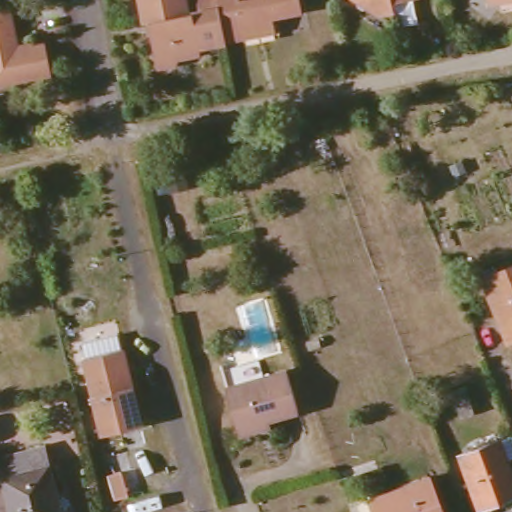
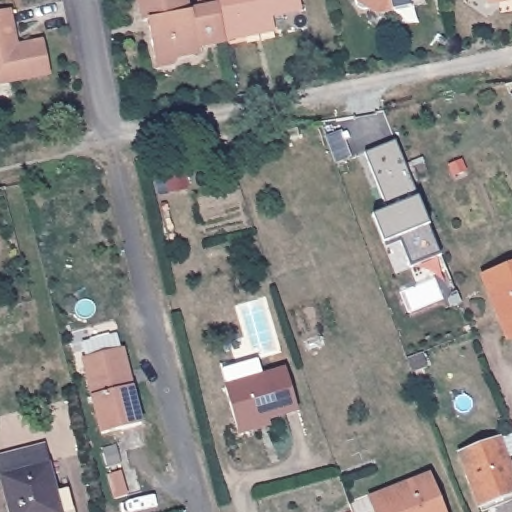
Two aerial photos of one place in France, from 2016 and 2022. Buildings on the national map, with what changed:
unchanged [(199,51),(200,55),(176,61),(164,54),(155,55),(152,38),(154,30),(153,22),(145,24),(140,0),(185,0),(187,13),(198,11),(196,0),(216,0),(224,39),(225,46),(199,51)]
unchanged [(224,39),(216,0),(299,0),(301,9),(271,15),(274,29),(246,34),(224,39)]
unchanged [(391,9),(377,12),(366,6),(358,7),(354,5),(353,0),(394,0),(390,1),(391,9)]
unchanged [(0,13),(11,11),(16,36),(12,41),(22,48),(45,43),(52,76),(0,86),(0,13)]
new [(337,165),(332,151),(327,139),(340,134),(345,146),(350,160),(337,165)]
new [(374,214),(389,208),(366,151),(397,139),(442,254),(412,266),(401,241),(387,247),(374,214)]
unchanged [(508,340),(484,278),(512,267),(512,338),(508,340)]
unchanged [(88,364),(91,364),(87,348),(122,339),(126,354),(128,354),(135,380),(130,385),(132,394),(137,393),(147,430),(106,440),(88,364)]
unchanged [(222,385),(282,368),(294,408),(264,416),(267,424),(236,433),(234,425),(222,385)]
unchanged [(460,418),(451,393),(465,388),(475,413),(460,418)]
unchanged [(479,507),(460,455),(498,441),(512,477),(512,494),(479,507)]
unchanged [(75,489),(80,512),(15,512),(2,458),(32,449),(47,445),(60,493),(75,489)]
unchanged [(122,473),(128,497),(116,500),(110,476),(122,473)]
unchanged [(370,500),(429,478),(443,512),(375,512),(370,500)]
unchanged [(350,511),(350,512),(346,512),(350,511)]

